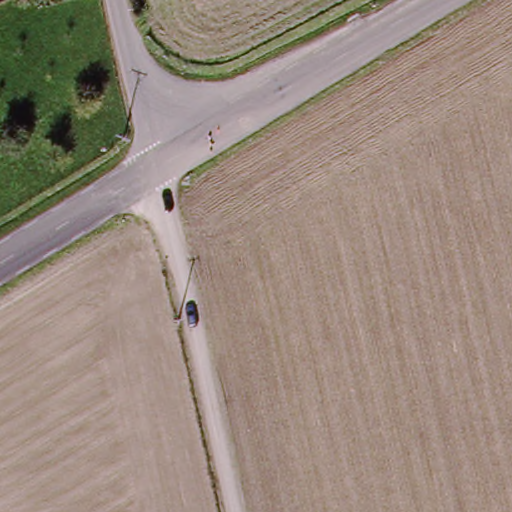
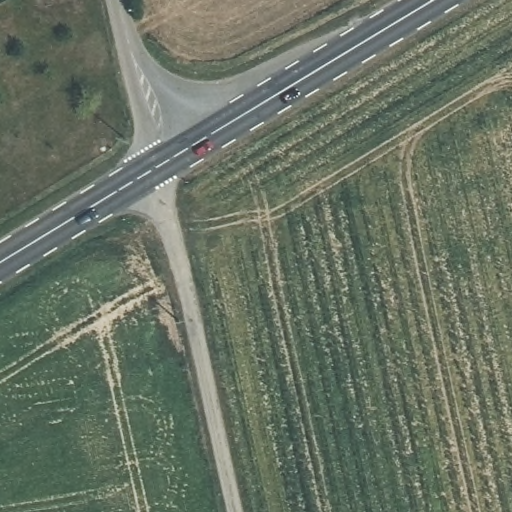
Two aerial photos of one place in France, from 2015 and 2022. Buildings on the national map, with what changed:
[]

